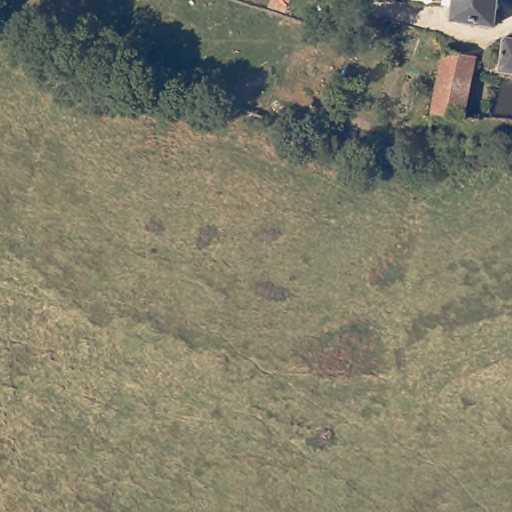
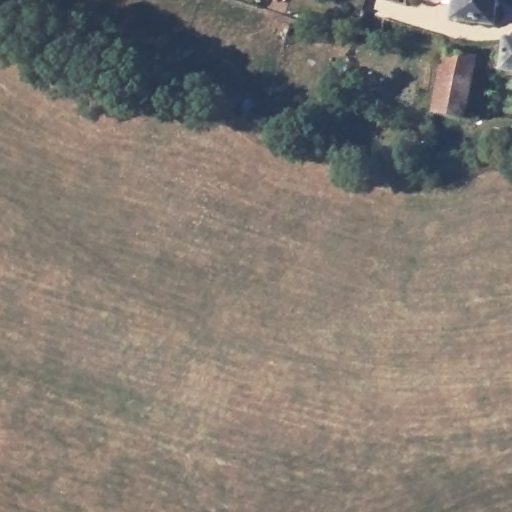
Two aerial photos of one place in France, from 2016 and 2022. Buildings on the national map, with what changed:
unchanged [(455,4),(418,0),(456,0),(455,4)]
unchanged [(496,24),(453,20),(455,4),(456,0),(499,0),(496,24)]
unchanged [(504,69),(508,37),(512,38),(512,71),(504,69)]
unchanged [(432,110),(444,50),(447,50),(476,56),(463,116),(434,111),(432,110)]

